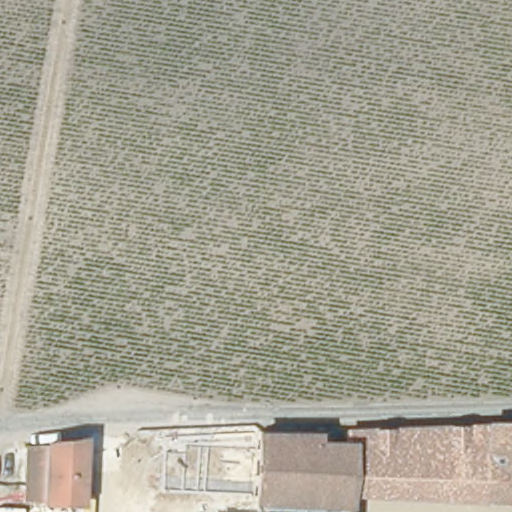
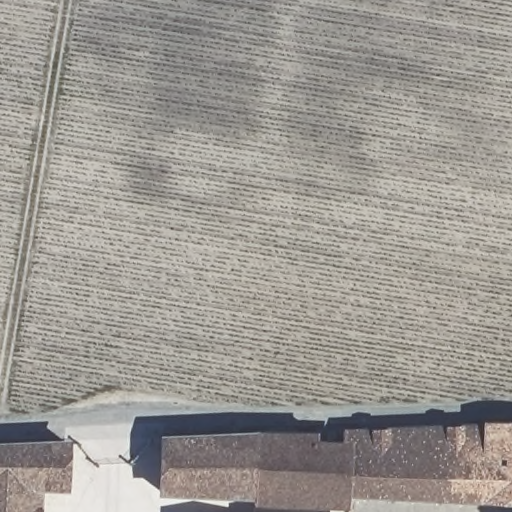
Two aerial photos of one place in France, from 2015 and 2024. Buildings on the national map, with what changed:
unchanged [(346,497),(250,495),(253,426),(512,421),(512,485),(346,479),(346,497)]
new [(157,494),(159,434),(253,426),(250,495),(157,494)]
new [(71,438),(69,490),(42,490),(42,512),(0,512),(0,441),(71,438)]
demolished [(86,495),(85,512),(32,512),(35,447),(92,439),(86,495)]

